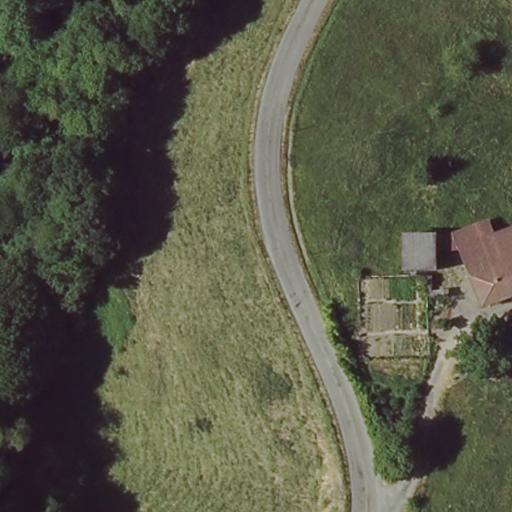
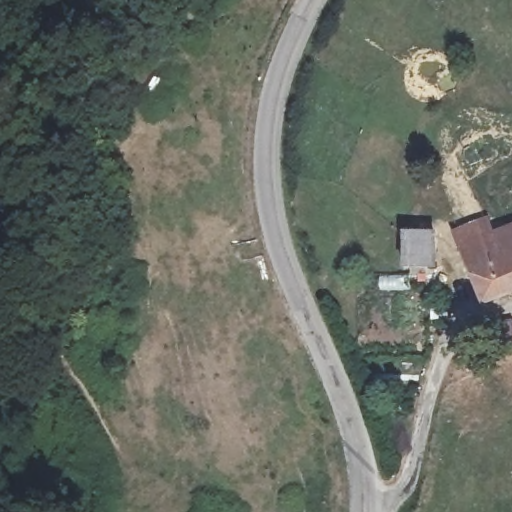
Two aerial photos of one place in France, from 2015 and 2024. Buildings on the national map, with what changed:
unchanged [(451,227),(484,218),(491,242),(512,235),(512,289),(470,302),(458,254),(451,227)]
unchanged [(413,232),(435,236),(427,276),(407,272),(413,232)]

